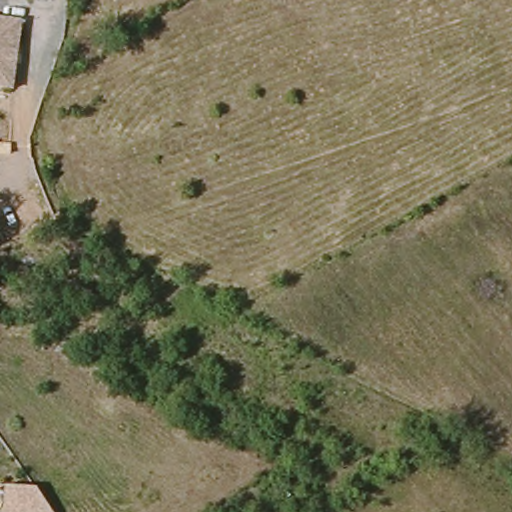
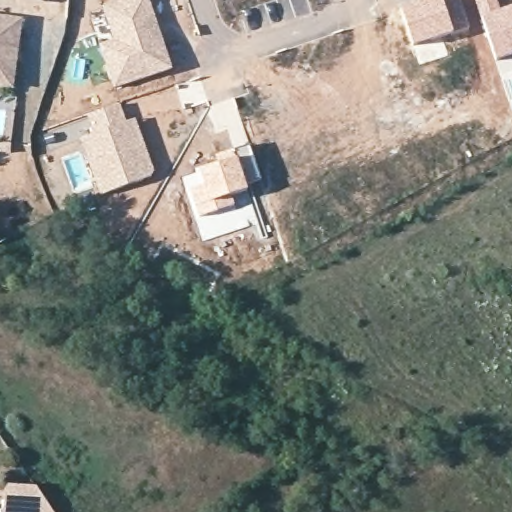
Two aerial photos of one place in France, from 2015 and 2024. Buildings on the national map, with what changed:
new [(100,4),(112,0),(149,0),(173,70),(113,90),(98,41),(109,37),(100,4)]
new [(450,0),(460,0),(470,29),(457,34),(443,39),(413,48),(400,9),(427,0),(445,0),(445,2),(450,0)]
new [(512,7),(512,59),(510,60),(496,64),(474,0),(498,0),(501,10),(512,7)]
unchanged [(11,89),(0,87),(0,16),(21,19),(11,89)]
new [(91,132),(85,115),(120,102),(127,121),(135,118),(155,176),(97,197),(78,137),(91,132)]
new [(195,171),(195,167),(235,152),(247,185),(250,191),(232,197),(236,209),(195,219),(181,177),(195,171)]
unchanged [(46,512),(2,512),(3,492),(33,493),(46,512)]

